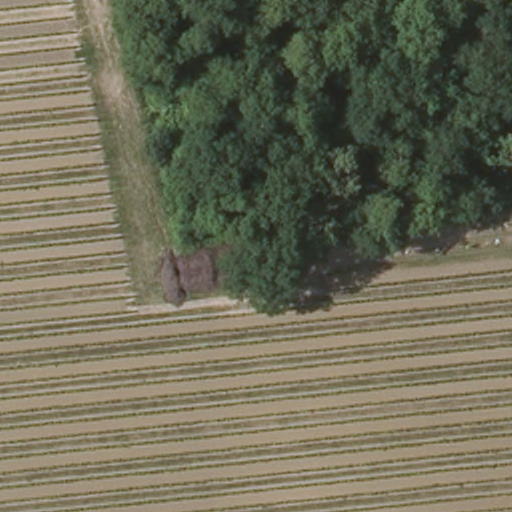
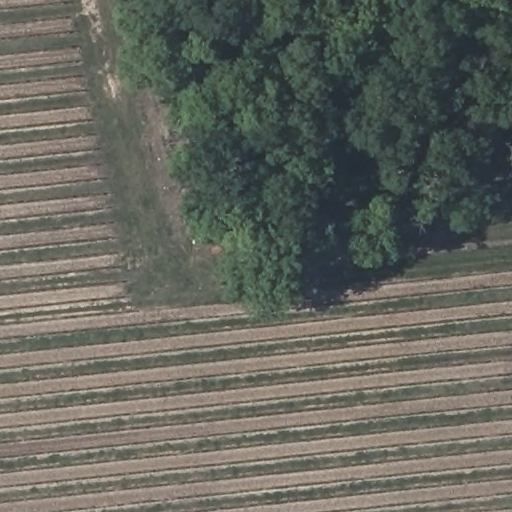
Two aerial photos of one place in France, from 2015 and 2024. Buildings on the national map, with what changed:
[]

